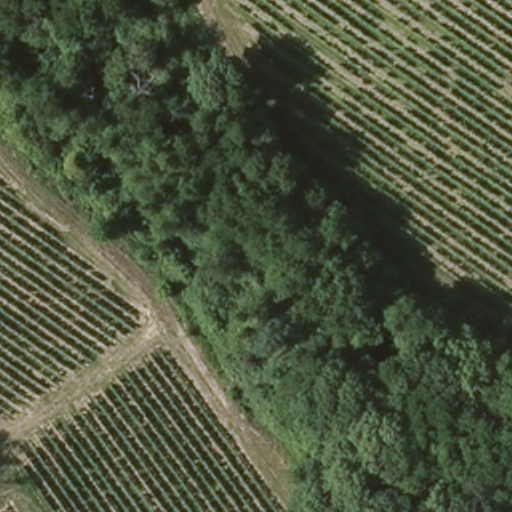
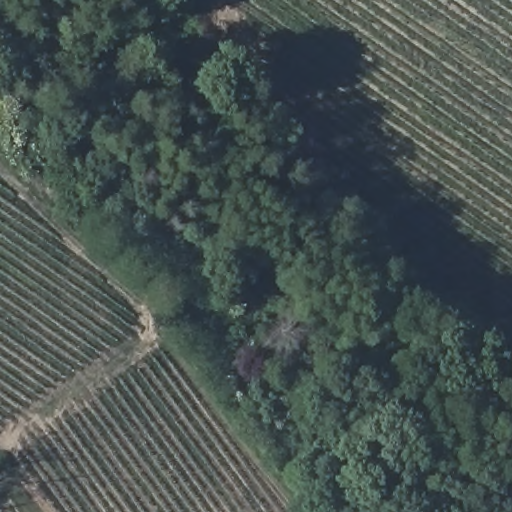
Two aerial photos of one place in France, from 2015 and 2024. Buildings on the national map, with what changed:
[]

